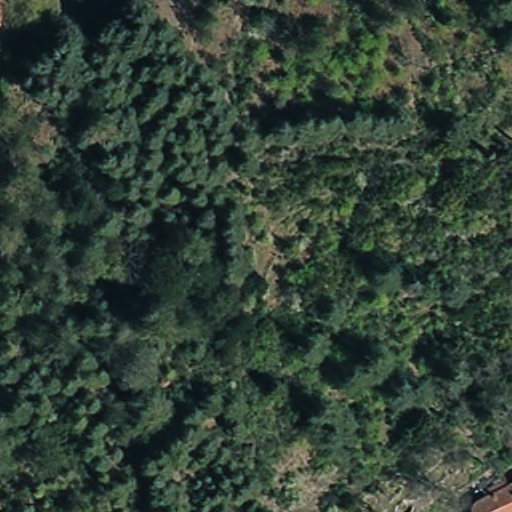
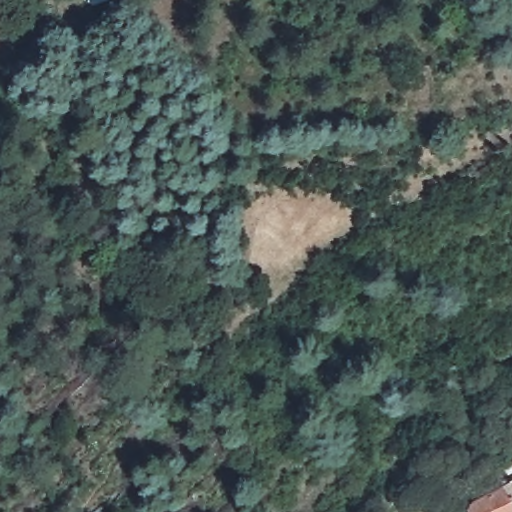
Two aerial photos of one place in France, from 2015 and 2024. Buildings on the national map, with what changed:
unchanged [(512,484),(512,500),(505,489),(512,484)]
unchanged [(472,510),(505,489),(512,500),(512,512),(473,512),(472,510)]

